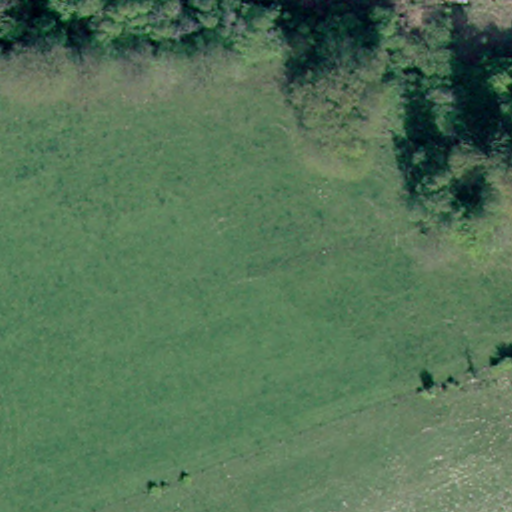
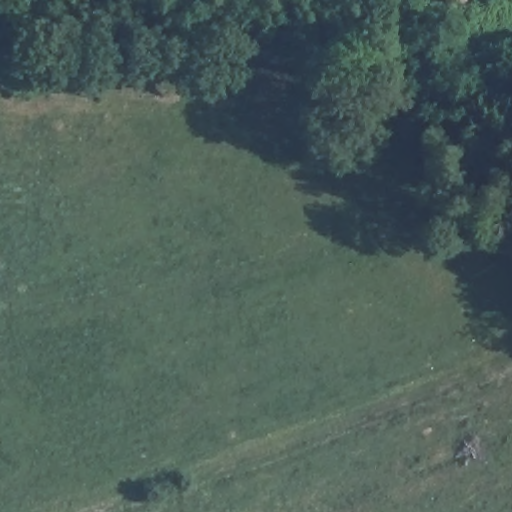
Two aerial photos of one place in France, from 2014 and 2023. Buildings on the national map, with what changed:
unchanged [(459,7),(437,8),(437,0),(459,0),(459,7)]

